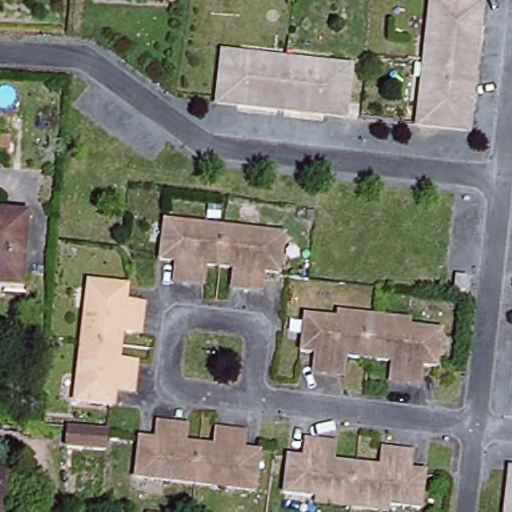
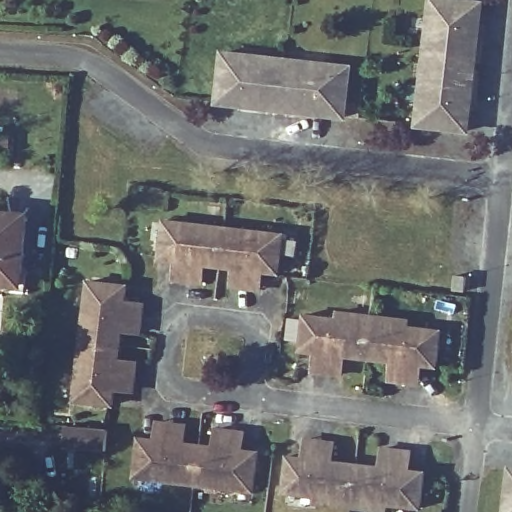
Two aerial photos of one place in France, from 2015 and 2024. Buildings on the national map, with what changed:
unchanged [(462,134),(420,129),(433,5),(483,9),(472,126),(464,125),(462,134)]
unchanged [(223,54),(286,62),(279,110),(217,102),(223,54)]
unchanged [(343,118),(279,110),(286,62),(349,71),(343,118)]
unchanged [(26,285),(0,283),(0,211),(31,214),(26,285)]
unchanged [(234,285),(236,266),(205,262),(203,281),(187,280),(174,278),(176,261),(163,258),(167,220),(284,232),(280,267),(265,267),(263,287),(252,287),(234,285)]
unchanged [(117,387),(116,402),(77,398),(90,280),(131,284),(129,300),(146,302),(145,311),(144,333),(124,331),(123,362),(138,363),(137,378),(136,388),(117,387)]
unchanged [(409,381),(393,380),(394,362),(344,357),(343,373),(323,372),(313,371),(315,353),(302,352),(306,314),(335,316),(335,310),(409,319),(410,327),(439,330),(437,367),(422,366),(420,382),(409,381)]
unchanged [(255,488),(196,481),(139,476),(142,436),(157,437),(159,421),(170,422),(188,423),(188,441),(215,443),(217,427),(236,429),(246,430),(244,449),(260,452),(255,488)]
unchanged [(68,447),(68,425),(80,426),(112,427),(108,449),(77,447),(68,447)]
unchanged [(421,508),(391,505),(389,509),(317,502),(316,495),(287,492),(290,455),(304,456),(306,438),(316,439),(335,441),(333,460),(348,462),(381,466),(383,447),(402,448),(411,450),(410,468),(425,470),(421,508)]
unchanged [(9,473),(4,512),(0,512),(0,472),(9,473)]
unchanged [(508,472),(512,472),(512,512),(504,512),(508,472)]

